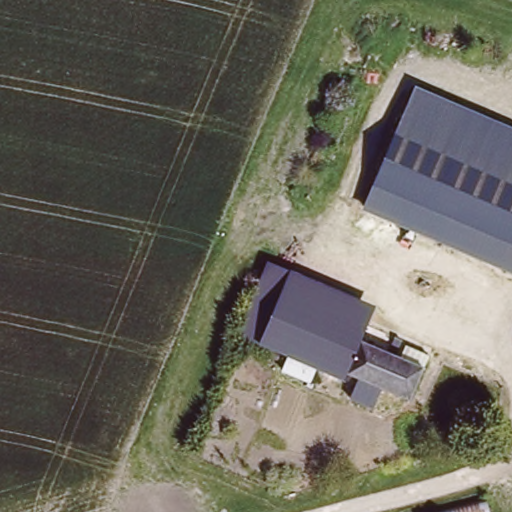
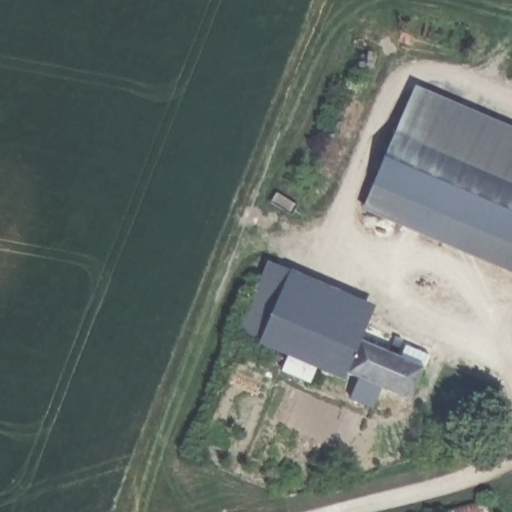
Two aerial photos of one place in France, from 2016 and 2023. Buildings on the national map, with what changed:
unchanged [(411,88),(512,122),(512,248),(373,201),(411,88)]
unchanged [(512,248),(512,275),(364,225),(373,201),(512,248)]
unchanged [(349,374),(338,382),(314,370),(308,383),(281,370),(289,355),(241,336),(269,262),(371,304),(362,342),(349,374)]
unchanged [(362,342),(406,358),(409,348),(438,362),(422,403),(377,386),(368,405),(354,399),(361,377),(349,374),(362,342)]
unchanged [(488,501),(489,512),(439,512),(488,501)]

